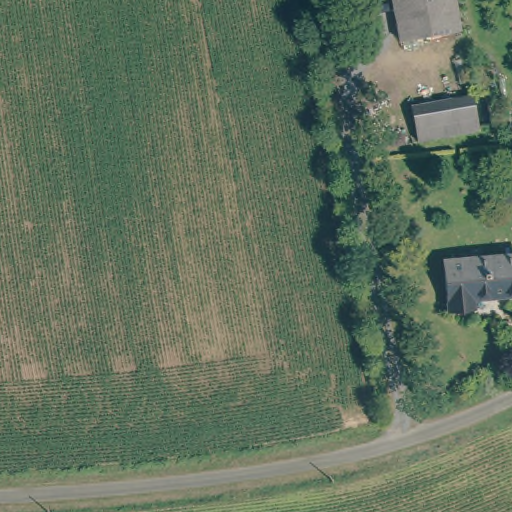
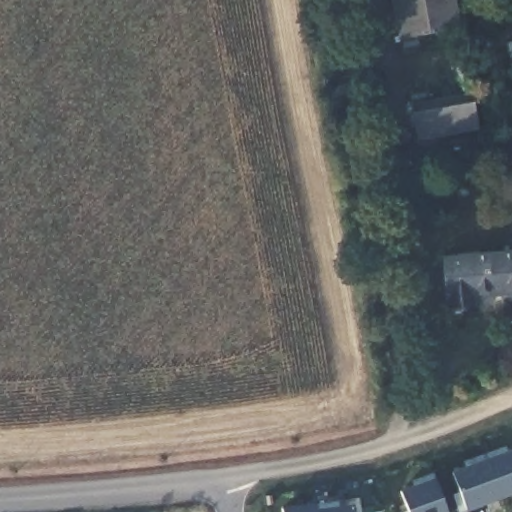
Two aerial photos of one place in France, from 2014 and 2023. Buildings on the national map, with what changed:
unchanged [(402,39),(395,0),(457,0),(463,28),(402,39)]
unchanged [(422,136),(415,101),(473,91),(480,127),(422,136)]
unchanged [(448,307),(442,259),(512,249),(512,288),(475,294),(476,303),(448,307)]
new [(481,450),(502,442),(504,448),(512,445),(512,487),(497,493),(481,450)]
new [(456,508),(450,490),(456,488),(448,469),(463,464),(461,458),(481,450),(497,493),(456,508)]
new [(430,469),(446,512),(444,512),(399,512),(397,509),(404,507),(397,488),(411,482),(409,476),(430,469)]
new [(313,501),(335,497),(336,504),(351,502),(352,512),(315,512),(313,501)]
new [(278,505),(313,501),(315,512),(279,512),(278,505)]

